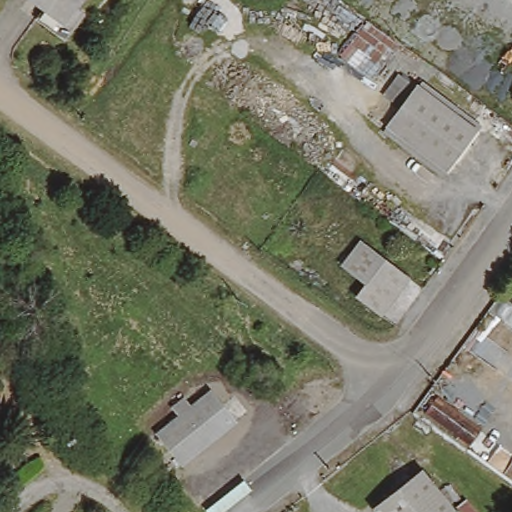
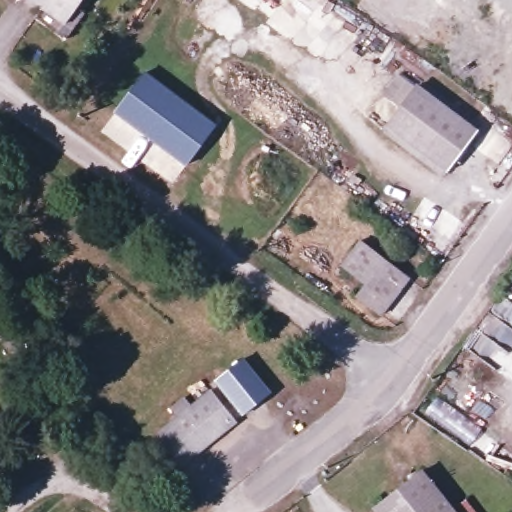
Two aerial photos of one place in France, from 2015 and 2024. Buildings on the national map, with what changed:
unchanged [(30,0),(82,0),(65,25),(30,0)]
new [(145,72),(217,125),(187,167),(114,114),(145,72)]
unchanged [(477,125),(447,167),(390,123),(420,82),(477,125)]
unchanged [(380,318),(354,300),(370,288),(349,272),(368,248),(410,280),(380,318)]
new [(244,357),(271,392),(242,416),(214,382),(244,357)]
unchanged [(161,442),(179,421),(166,411),(180,395),(192,407),(207,389),(237,416),(189,466),(161,442)]
unchanged [(454,512),(373,512),(423,472),(454,512)]

